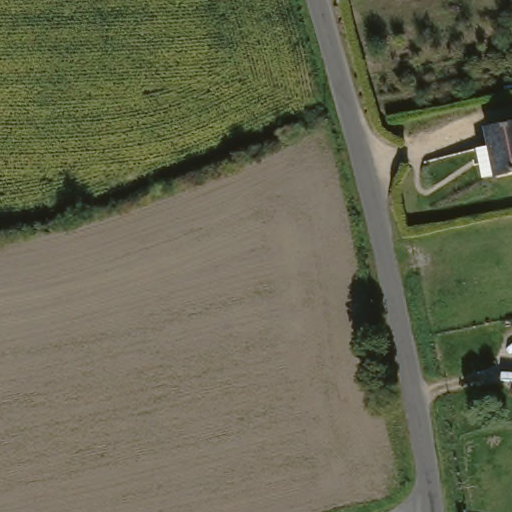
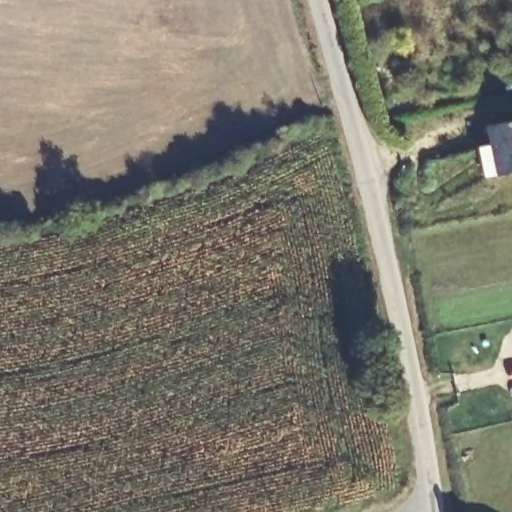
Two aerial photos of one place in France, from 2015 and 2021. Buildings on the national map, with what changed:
unchanged [(512,124),(512,173),(482,179),(477,152),(490,149),(487,129),(512,124)]

